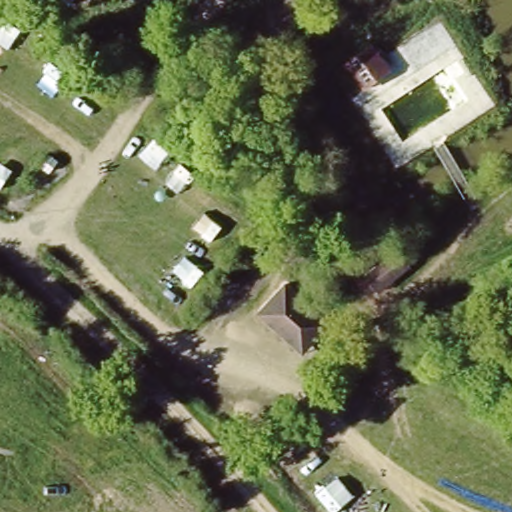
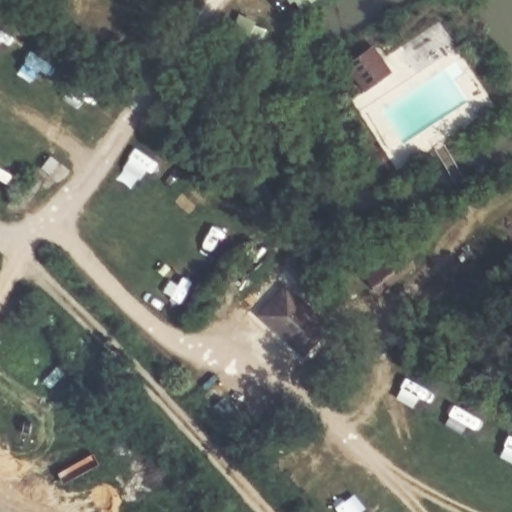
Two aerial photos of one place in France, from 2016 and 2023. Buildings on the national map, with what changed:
unchanged [(90,9),(80,0),(98,0),(90,9)]
unchanged [(368,271),(400,249),(417,268),(384,290),(368,271)]
unchanged [(288,287),(325,330),(296,355),(259,312),(288,287)]
unchanged [(418,335),(427,347),(397,368),(389,356),(418,335)]
unchanged [(295,491),(288,484),(296,477),(302,483),(295,491)]

